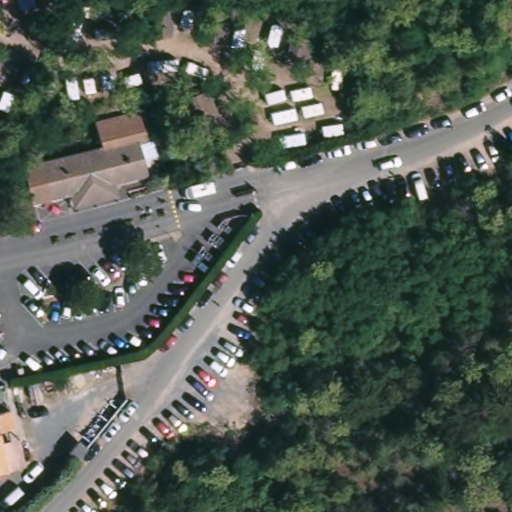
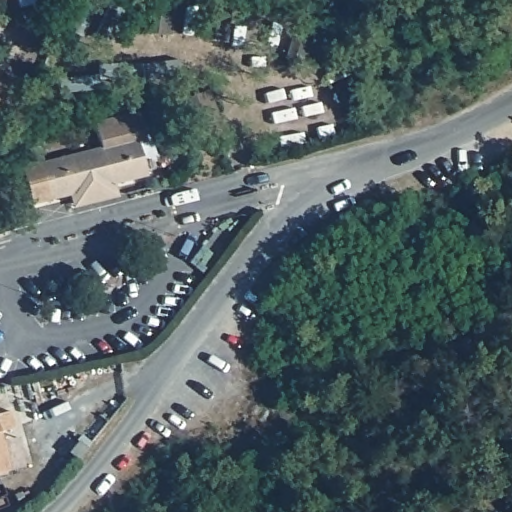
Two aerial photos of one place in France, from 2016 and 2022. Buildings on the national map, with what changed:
unchanged [(155,180),(116,190),(119,200),(78,211),(74,193),(32,203),(23,168),(104,147),(98,123),(142,111),(150,135),(143,137),(155,180)]
unchanged [(14,414),(18,430),(1,435),(12,474),(0,477),(0,417),(14,414)]

